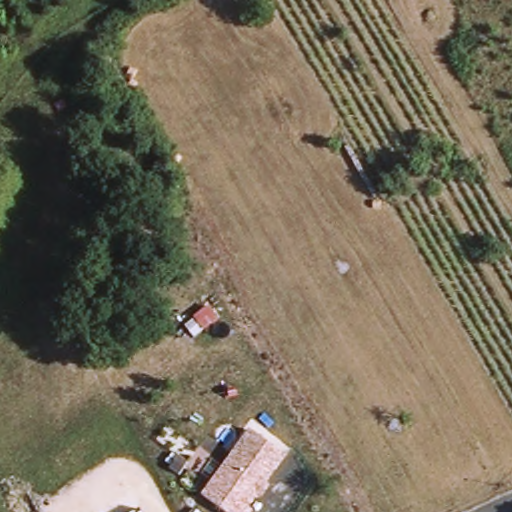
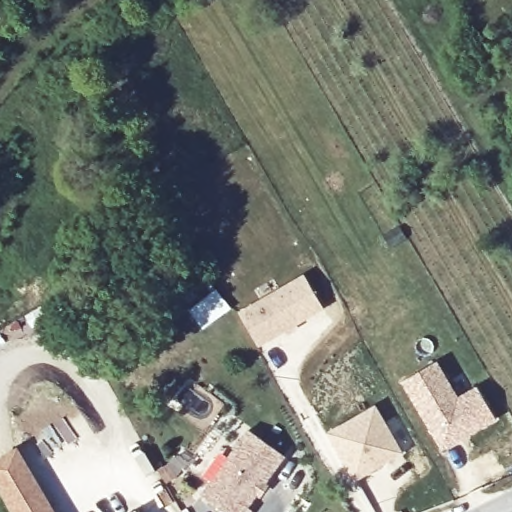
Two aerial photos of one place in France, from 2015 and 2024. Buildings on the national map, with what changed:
new [(302,278),(320,310),(255,347),(238,314),(302,278)]
new [(219,290),(232,307),(220,316),(205,328),(192,311),(207,299),(219,290)]
new [(400,382),(435,362),(457,398),(475,388),(495,420),(441,451),(400,382)]
new [(326,436),(371,409),(398,454),(350,479),(326,436)]
unchanged [(285,456),(249,509),(253,512),(223,512),(201,495),(246,431),(285,456)]
new [(7,487),(0,474),(0,462),(25,448),(37,469),(58,504),(63,512),(22,512),(7,487)]

